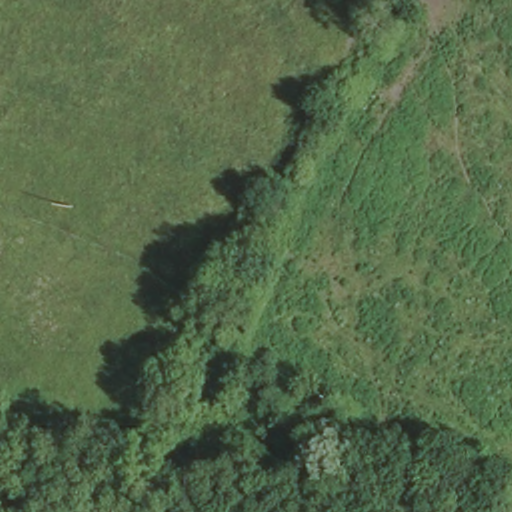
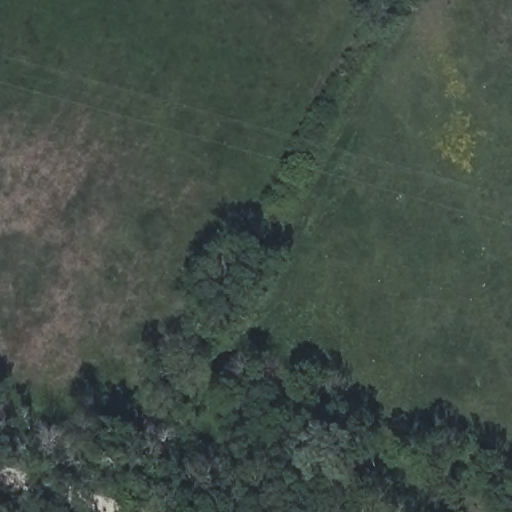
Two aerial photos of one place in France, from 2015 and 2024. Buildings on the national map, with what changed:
[]

